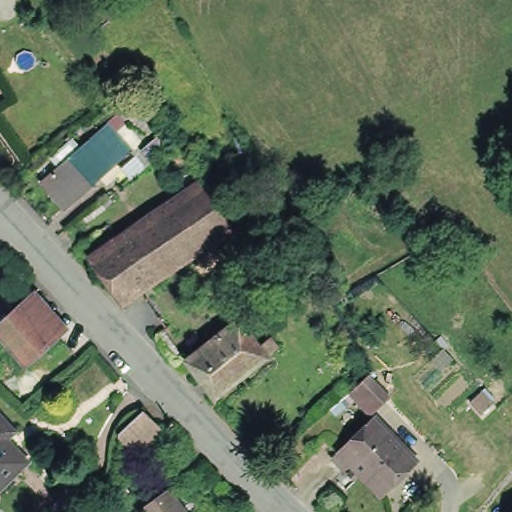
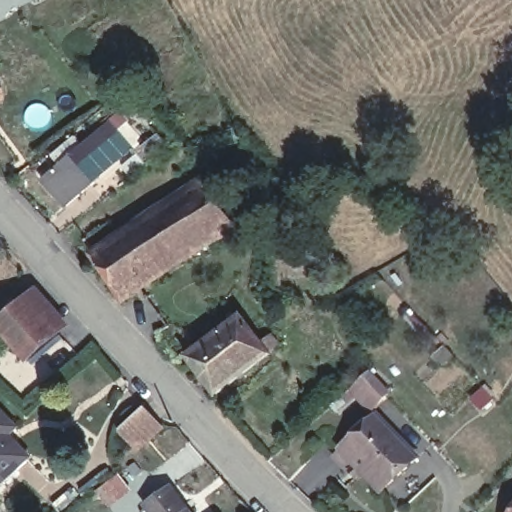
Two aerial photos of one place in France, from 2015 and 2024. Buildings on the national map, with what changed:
unchanged [(95,134),(106,124),(103,121),(116,110),(125,119),(145,142),(156,133),(165,144),(140,164),(125,147),(114,156),(103,166),(93,175),(95,176),(80,189),(60,205),(40,179),(58,164),(68,156),(83,143),(95,134)]
unchanged [(201,179),(230,222),(120,295),(91,251),(201,179)]
unchanged [(65,324),(33,351),(1,314),(31,287),(65,324)]
unchanged [(218,391),(190,355),(242,314),(265,342),(273,335),(279,342),(270,349),(270,350),(218,391)]
unchanged [(371,408),(350,386),(367,370),(388,391),(371,408)]
unchanged [(10,414),(1,424),(24,447),(7,463),(0,456),(0,404),(10,414)]
unchanged [(137,407),(152,425),(128,445),(113,427),(137,407)]
unchanged [(347,470),(333,456),(375,413),(390,426),(355,462),(347,470)]
unchanged [(363,470),(355,462),(390,426),(418,455),(387,486),(383,490),(363,470)]
unchanged [(7,463),(0,470),(0,456),(7,463)]
unchanged [(105,503),(92,488),(112,473),(123,488),(105,503)]
unchanged [(147,499),(170,483),(186,503),(187,507),(190,512),(155,512),(147,499)]

